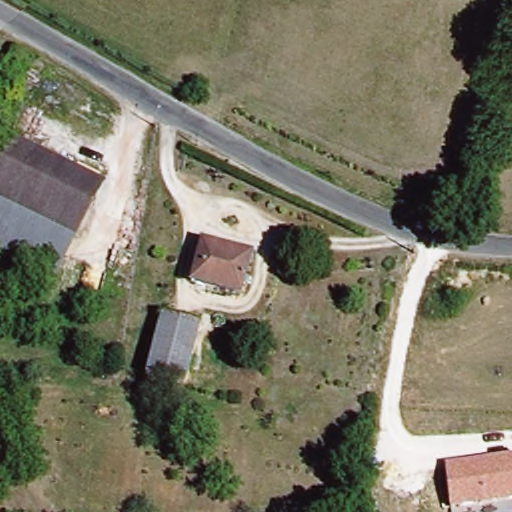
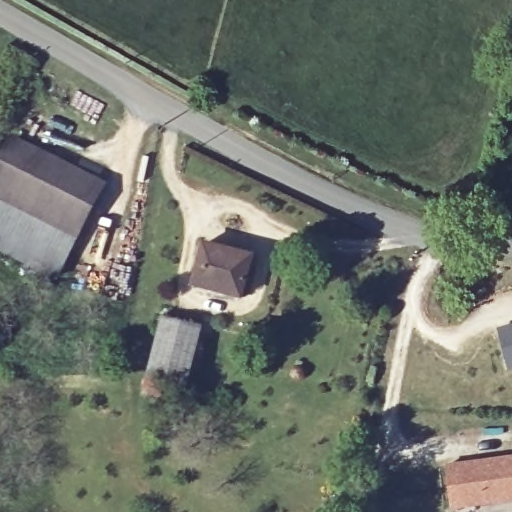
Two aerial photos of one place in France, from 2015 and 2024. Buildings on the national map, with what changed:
unchanged [(93,187),(47,276),(0,251),(0,156),(7,142),(93,187)]
unchanged [(197,245),(243,259),(230,301),(184,286),(197,245)]
unchanged [(158,322),(192,332),(178,387),(144,378),(158,322)]
new [(495,331),(512,326),(512,372),(508,373),(495,331)]
unchanged [(512,456),(512,500),(452,510),(446,466),(512,456)]

